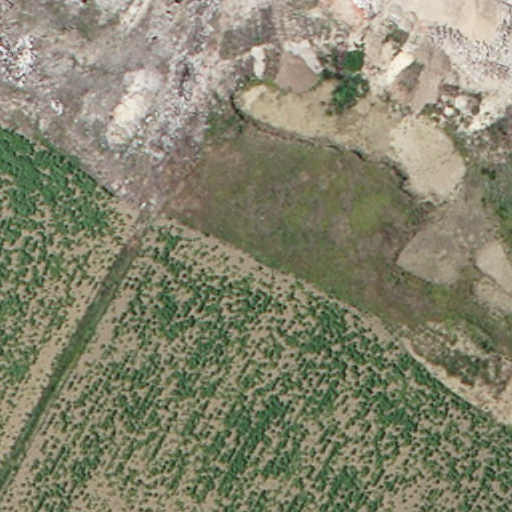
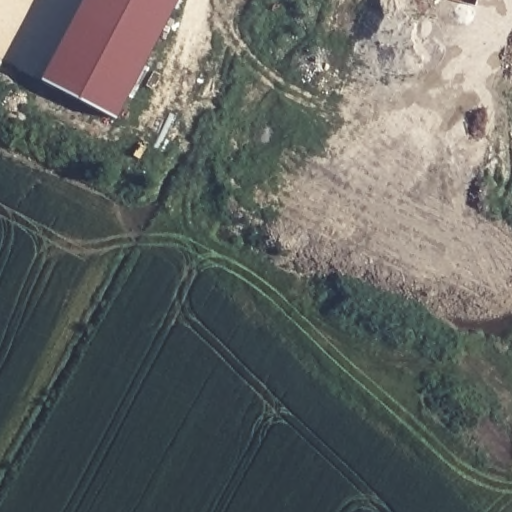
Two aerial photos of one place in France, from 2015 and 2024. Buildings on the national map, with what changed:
new [(180,0),(117,115),(45,76),(86,0),(180,0)]

